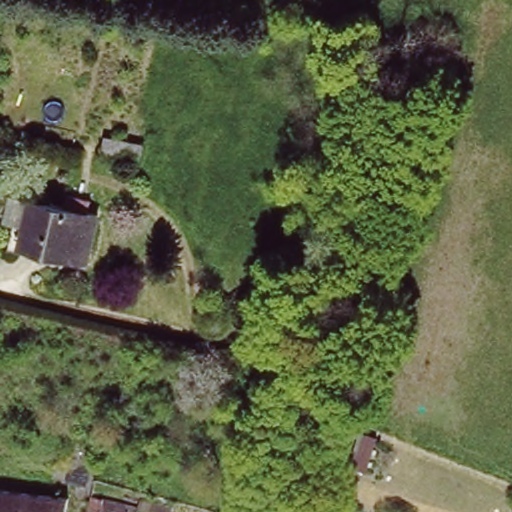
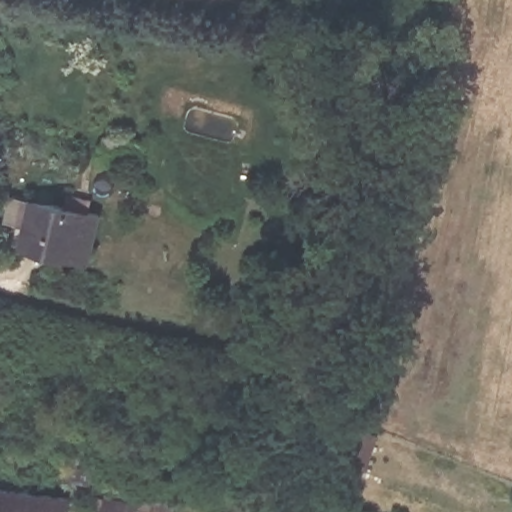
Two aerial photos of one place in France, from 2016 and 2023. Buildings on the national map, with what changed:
unchanged [(149,141),(145,162),(107,153),(111,132),(149,141)]
unchanged [(72,211),(73,200),(94,204),(92,216),(105,219),(95,261),(27,245),(30,228),(10,224),(16,198),(72,211)]
unchanged [(330,328),(319,374),(286,366),(297,321),(330,328)]
unchanged [(23,512),(0,512),(0,486),(26,490),(23,512)]
unchanged [(68,495),(67,512),(23,512),(26,490),(68,495)]
unchanged [(146,512),(97,512),(100,501),(146,512)]

